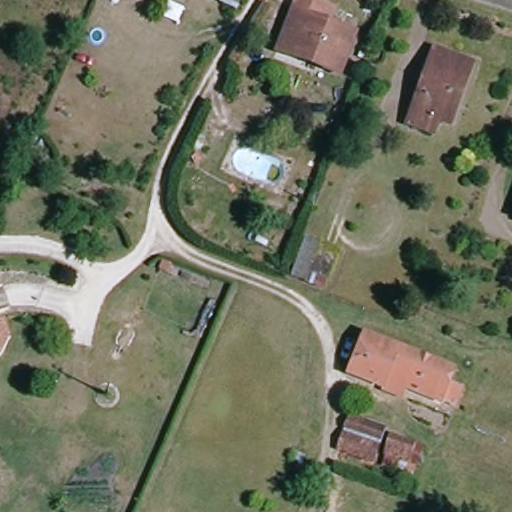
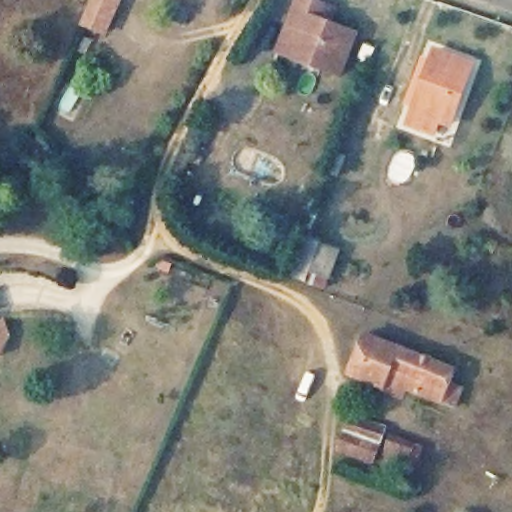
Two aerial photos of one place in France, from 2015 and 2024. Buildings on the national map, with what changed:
new [(105,37),(79,26),(91,0),(122,0),(105,37)]
unchanged [(232,9),(219,4),(220,0),(235,0),(232,9)]
unchanged [(289,15),(295,0),(298,0),(322,9),(316,24),(350,37),(336,76),(324,71),(274,53),(289,15)]
unchanged [(469,64),(447,128),(434,124),(430,136),(404,126),(431,51),(469,64)]
unchanged [(301,242),(313,247),(300,280),(288,277),(301,242)]
unchanged [(317,249),(334,254),(320,288),(304,282),(317,249)]
unchanged [(6,340),(0,352),(0,324),(1,324),(6,340)]
unchanged [(357,337),(444,372),(438,385),(453,392),(447,406),(432,401),(431,402),(377,382),(374,387),(343,376),(357,337)]
unchanged [(347,459),(352,449),(346,446),(358,415),(389,427),(377,457),(373,457),(369,467),(347,459)]
unchanged [(401,433),(422,441),(414,458),(409,457),(404,468),(389,463),(401,433)]

